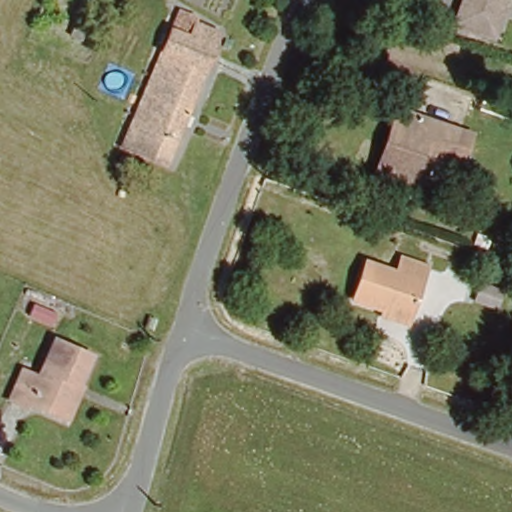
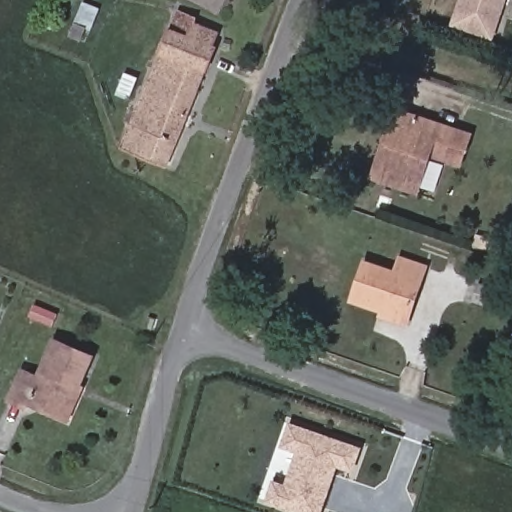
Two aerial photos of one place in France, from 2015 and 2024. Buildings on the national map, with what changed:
unchanged [(501,0),(492,29),(456,16),(462,0),(501,0)]
unchanged [(189,15),(187,23),(211,32),(207,44),(213,46),(169,163),(125,146),(178,11),(189,15)]
unchanged [(468,132),(458,159),(441,154),(428,149),(414,187),(375,174),(371,172),(393,105),(406,110),(451,126),(468,132)]
unchanged [(408,318),(351,298),(363,264),(397,275),(402,259),(425,268),(408,318)]
unchanged [(474,280),(499,288),(493,305),(469,297),(474,280)]
unchanged [(73,414),(66,412),(34,398),(31,406),(16,399),(29,369),(40,373),(56,334),(94,350),(77,389),(83,391),(73,414)]
new [(353,472),(337,467),(322,512),(291,512),(264,503),(273,479),(285,484),(296,453),(280,448),(289,422),(362,447),(353,472)]

